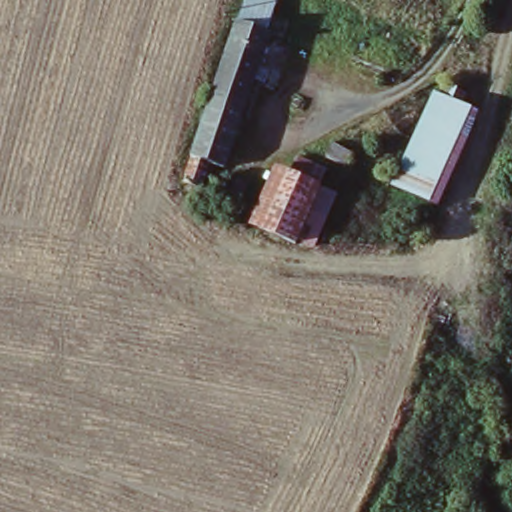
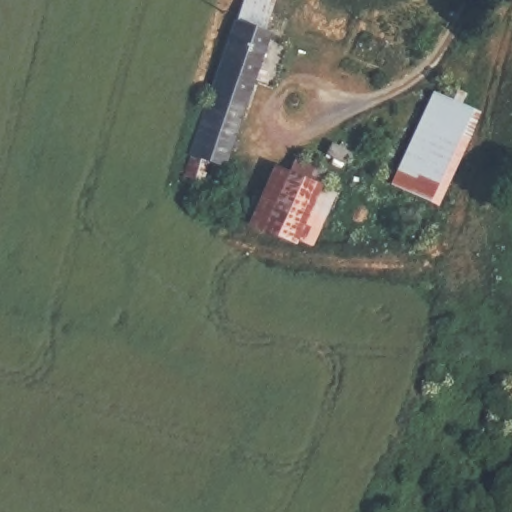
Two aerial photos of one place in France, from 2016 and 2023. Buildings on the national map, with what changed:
unchanged [(268,25),(221,164),(207,157),(198,180),(179,176),(241,0),(272,0),(264,25),(268,25)]
unchanged [(444,99),(448,89),(467,96),(462,108),(480,116),(441,210),(394,188),(437,95),(444,99)]
unchanged [(355,151),(348,165),(328,154),(336,140),(355,151)]
unchanged [(259,241),(299,150),(329,164),(323,180),(346,191),(338,208),(330,204),(308,257),(291,247),(289,253),(259,241)]
unchanged [(509,184),(499,210),(471,198),(481,174),(509,184)]
unchanged [(213,185),(206,193),(200,188),(206,180),(213,185)]

